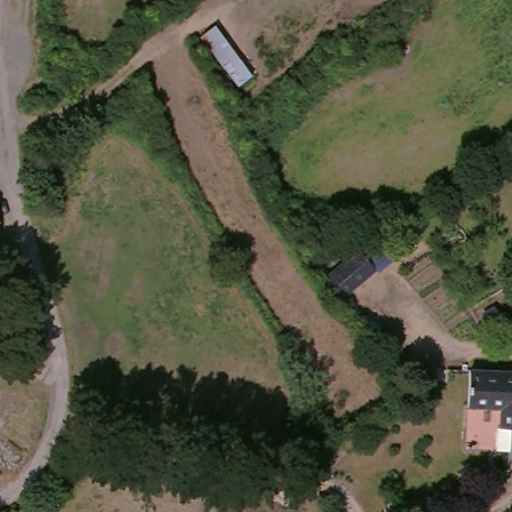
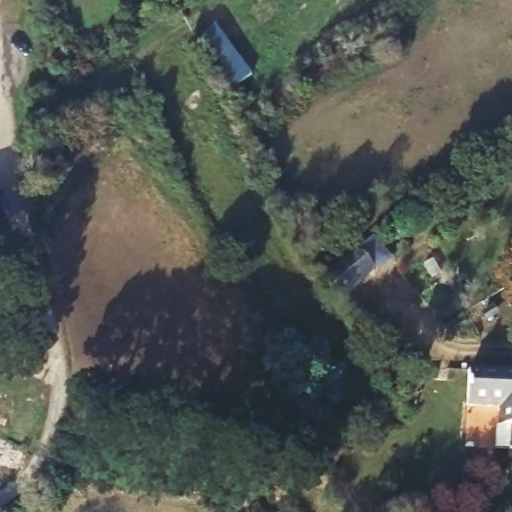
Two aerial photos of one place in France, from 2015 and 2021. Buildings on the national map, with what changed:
unchanged [(235,91),(198,39),(219,25),(257,75),(235,91)]
unchanged [(1,252),(0,252),(0,246),(1,252)]
unchanged [(380,268),(337,297),(322,276),(365,246),(380,268)]
unchanged [(501,411),(468,408),(471,365),(512,367),(512,456),(498,456),(501,411)]

